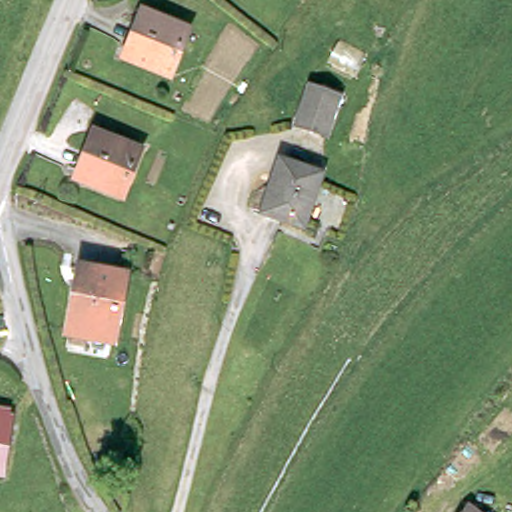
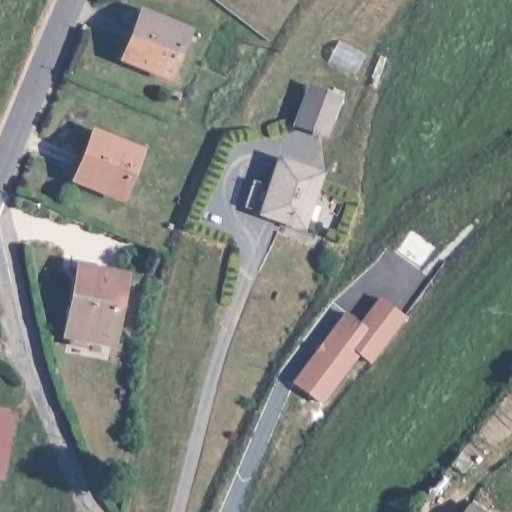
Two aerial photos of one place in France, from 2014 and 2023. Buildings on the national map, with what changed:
unchanged [(137,17),(182,34),(166,76),(146,68),(149,60),(125,50),(137,17)]
unchanged [(319,137),(294,128),(309,88),(334,96),(319,137)]
unchanged [(91,135),(136,155),(117,199),(93,189),(95,184),(74,175),(91,135)]
unchanged [(258,208),(277,157),(318,172),(299,224),(258,208)]
unchanged [(127,281),(113,340),(70,330),(84,271),(127,281)]
new [(407,317),(372,362),(360,353),(322,403),(294,381),(346,311),(361,323),(379,297),(407,317)]
unchanged [(9,416),(0,473),(0,415),(9,416)]
unchanged [(478,512),(467,512),(471,507),(478,512)]

